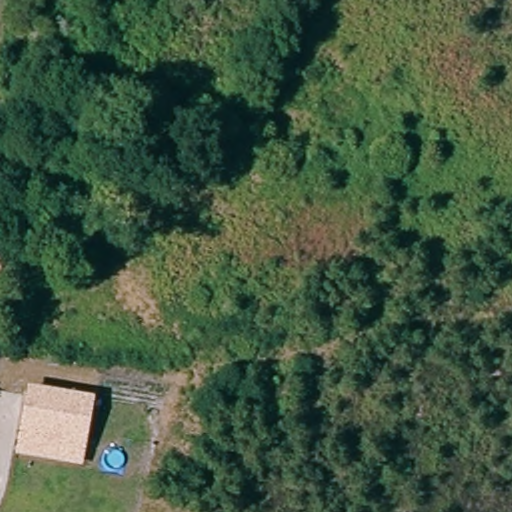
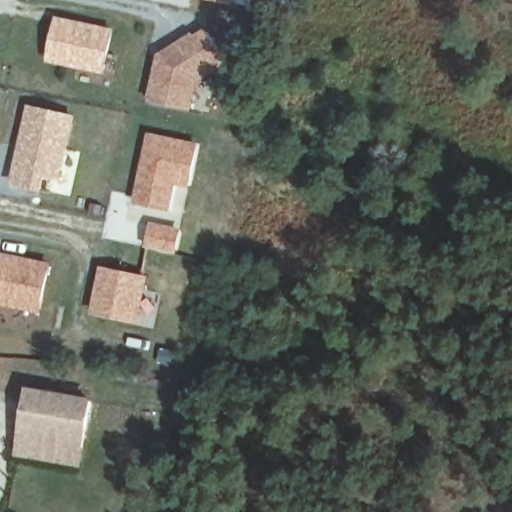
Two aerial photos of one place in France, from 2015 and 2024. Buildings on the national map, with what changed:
new [(56,16),(115,28),(105,71),(46,60),(56,16)]
new [(147,98),(157,53),(192,31),(194,34),(205,27),(227,62),(197,81),(192,108),(147,98)]
new [(27,104),(77,116),(60,182),(46,179),(42,192),(10,185),(27,104)]
demolished [(24,168),(31,127),(85,137),(77,177),(24,168)]
new [(148,132),(199,142),(191,185),(174,182),(170,208),(134,201),(148,132)]
new [(148,221),(181,228),(175,254),(142,246),(148,221)]
new [(0,304),(0,251),(51,263),(41,312),(0,304)]
demolished [(0,287),(0,261),(6,263),(0,287)]
new [(100,265),(149,276),(145,298),(156,304),(151,319),(144,317),(141,326),(87,315),(100,265)]
new [(95,399),(83,467),(16,455),(27,386),(95,399)]
demolished [(91,401),(85,447),(22,437),(30,390),(91,401)]

